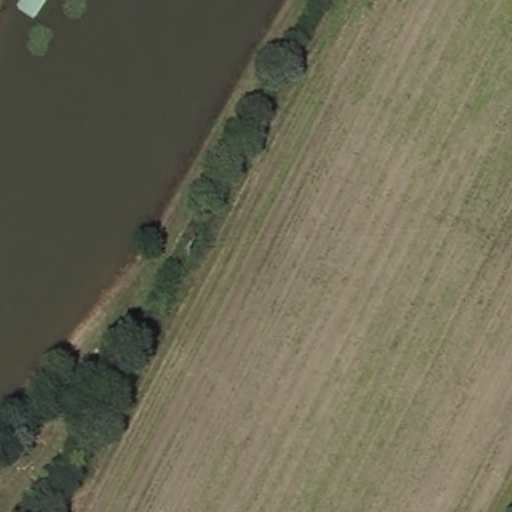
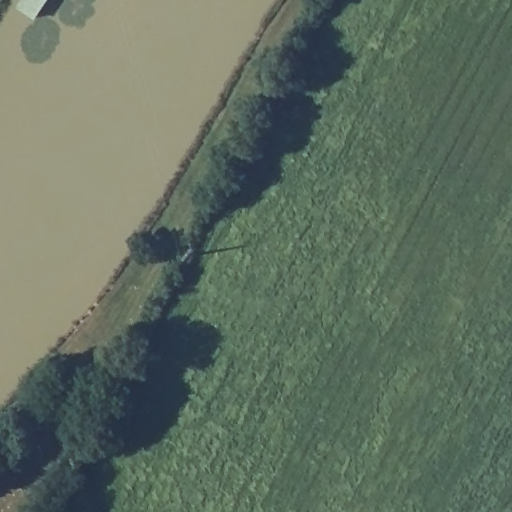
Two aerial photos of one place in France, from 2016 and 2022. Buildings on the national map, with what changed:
unchanged [(19,9),(24,0),(44,0),(33,18),(19,9)]

